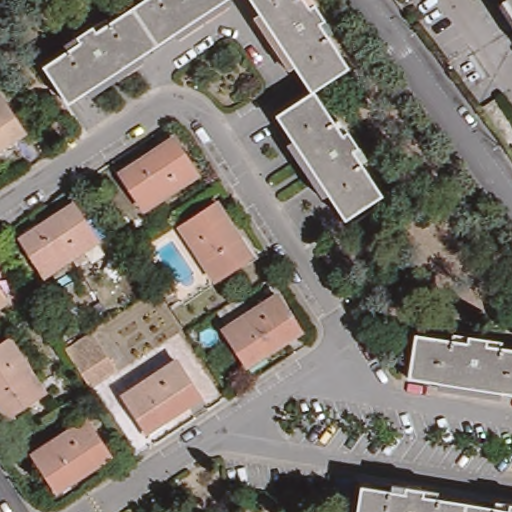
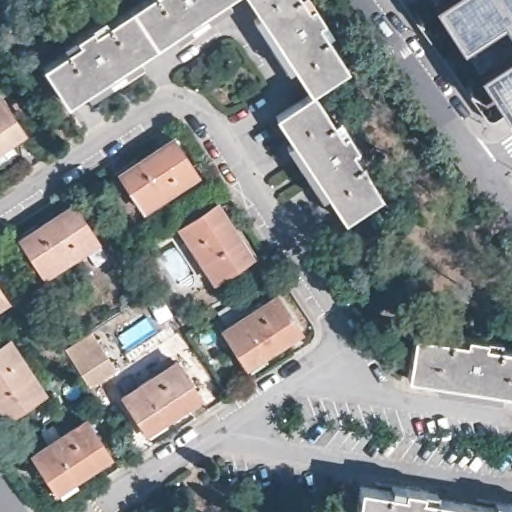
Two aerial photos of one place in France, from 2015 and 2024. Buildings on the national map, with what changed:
unchanged [(48,65),(80,43),(76,39),(101,23),(104,27),(146,0),(228,0),(73,102),(48,65)]
unchanged [(282,38),(257,0),(308,0),(353,69),(322,88),(318,91),(282,38)]
new [(459,44),(432,6),(441,0),(512,0),(512,35),(501,18),(459,44)]
demolished [(500,5),(507,0),(506,0),(512,0),(512,24),(500,5)]
new [(479,73),(512,51),(512,111),(506,115),(479,73)]
unchanged [(317,92),(318,91),(387,195),(351,219),(283,115),(312,95),(317,92)]
unchanged [(0,155),(0,104),(6,100),(29,135),(0,155)]
unchanged [(150,208),(126,172),(179,138),(202,173),(150,208)]
unchanged [(256,255),(220,279),(186,227),(222,204),(256,255)]
unchanged [(50,279),(27,243),(78,209),(102,244),(50,279)]
unchanged [(367,244),(356,225),(381,209),(394,226),(367,244)]
unchanged [(13,299),(0,308),(0,280),(13,299)]
unchanged [(301,329),(247,366),(223,330),(278,295),(301,329)]
unchanged [(89,330),(114,368),(89,384),(64,346),(89,330)]
unchanged [(421,335),(468,342),(469,336),(498,340),(497,347),(512,349),(512,393),(415,377),(421,335)]
unchanged [(49,393),(13,416),(0,396),(0,349),(15,340),(49,393)]
unchanged [(153,431),(130,395),(181,360),(205,395),(153,431)]
unchanged [(111,460),(58,495),(35,459),(87,425),(111,460)]
unchanged [(404,492),(405,485),(432,490),(432,497),(507,509),(509,502),(512,503),(512,512),(361,512),(365,486),(404,492)]

